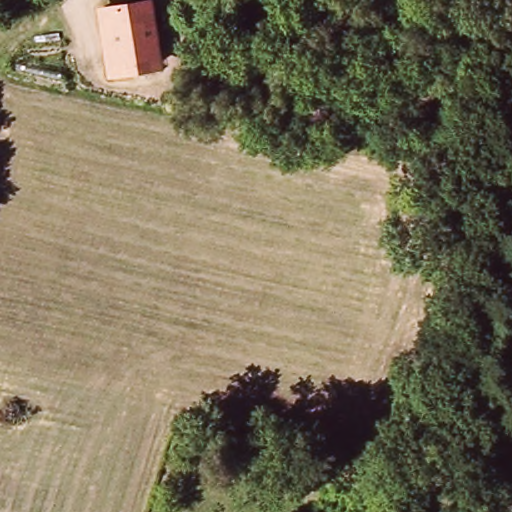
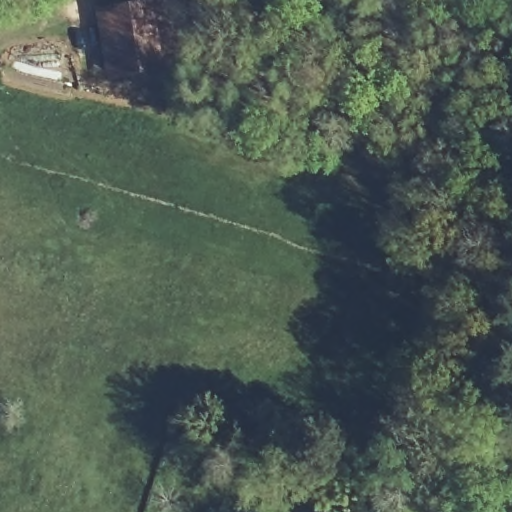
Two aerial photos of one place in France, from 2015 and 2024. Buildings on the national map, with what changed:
unchanged [(162,67),(162,71),(108,73),(107,58),(105,5),(160,3),(162,67)]

